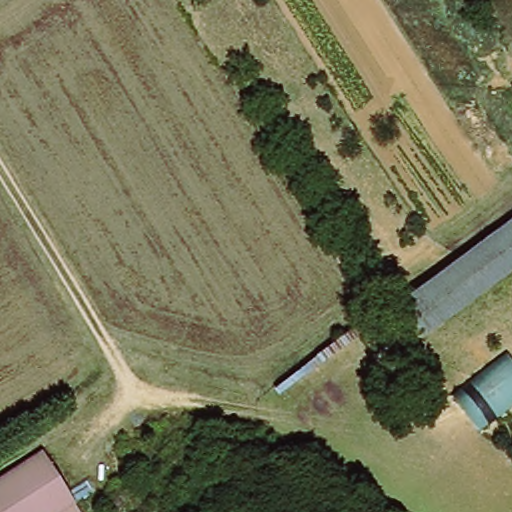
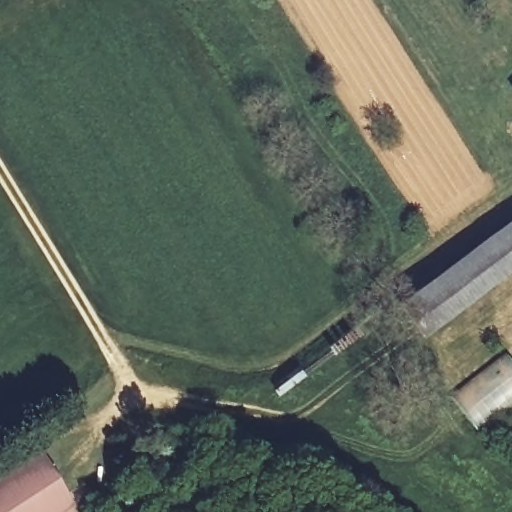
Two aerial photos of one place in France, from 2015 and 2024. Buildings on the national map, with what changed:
unchanged [(426,331),(406,305),(512,226),(512,269),(426,331)]
unchanged [(477,433),(456,403),(511,361),(512,363),(512,407),(477,433)]
unchanged [(0,481),(20,468),(37,454),(42,460),(72,505),(62,512),(0,512),(0,481)]

